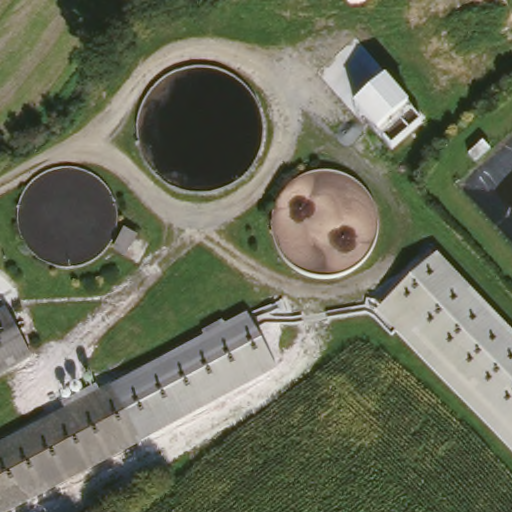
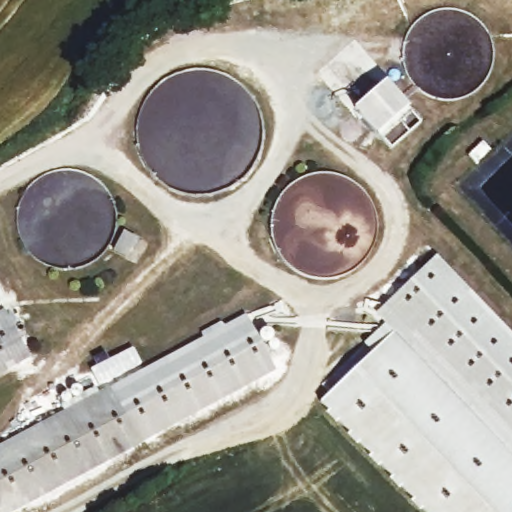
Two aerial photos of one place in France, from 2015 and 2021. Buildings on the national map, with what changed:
unchanged [(355,108),(387,80),(409,108),(421,123),(391,149),(377,134),(355,108)]
unchanged [(512,331),(512,442),(380,309),(439,254),(512,331)]
unchanged [(0,375),(0,299),(30,359),(0,375)]
unchanged [(243,313),(276,373),(139,449),(109,384),(243,313)]
new [(512,442),(512,512),(425,512),(320,402),(398,329),(512,442)]
unchanged [(0,441),(109,384),(139,449),(15,512),(0,512),(0,441)]

